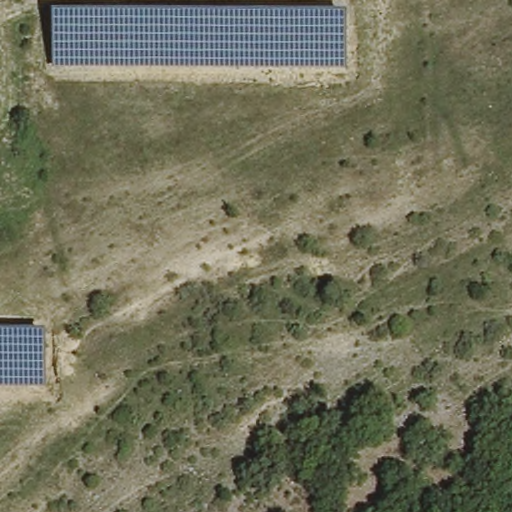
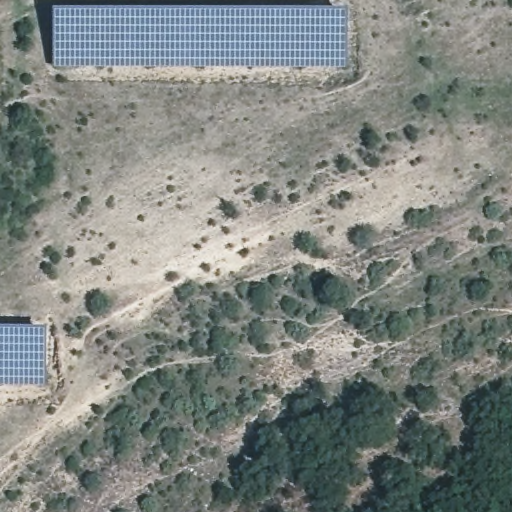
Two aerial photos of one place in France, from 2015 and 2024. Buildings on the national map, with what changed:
unchanged [(52,11),(347,12),(346,67),(52,68),(52,11)]
unchanged [(47,385),(0,385),(0,329),(47,330),(47,385)]

